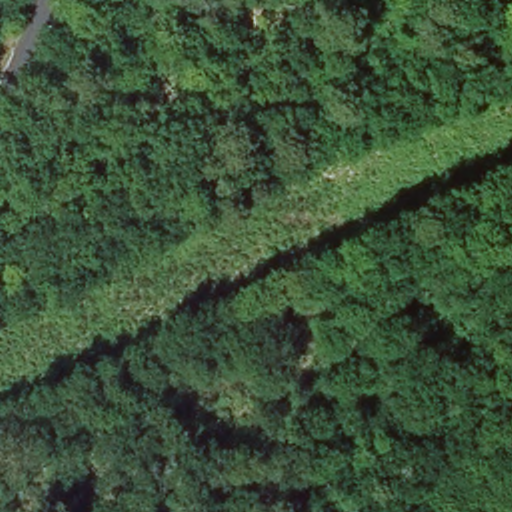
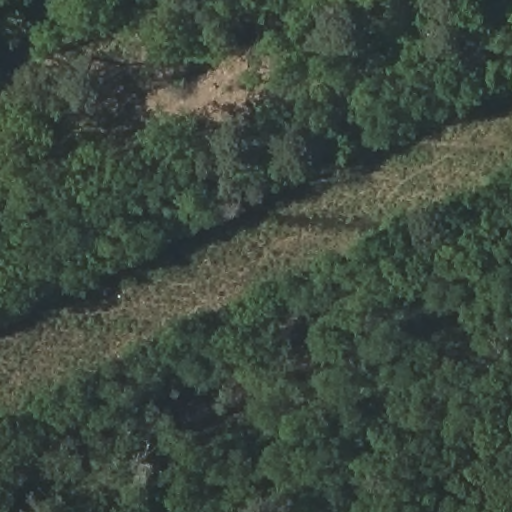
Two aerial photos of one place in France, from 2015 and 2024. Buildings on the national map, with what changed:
[]

